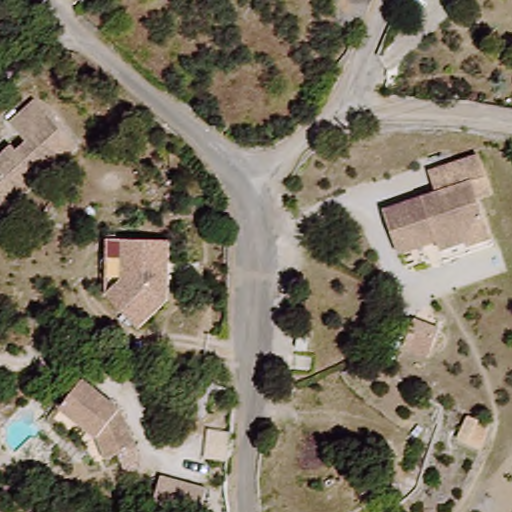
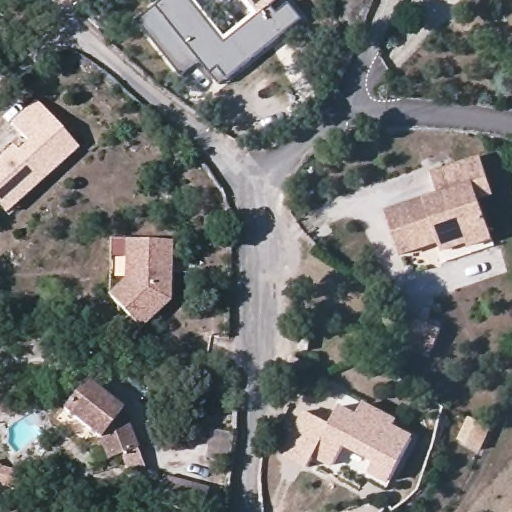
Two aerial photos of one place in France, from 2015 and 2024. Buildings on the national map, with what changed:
new [(214,77),(207,68),(189,83),(141,26),(172,0),(189,0),(194,6),(202,0),(281,0),(271,8),(278,16),(291,5),(304,21),(232,82),(224,88),(214,77)]
unchanged [(0,210),(0,161),(4,157),(11,151),(15,154),(25,146),(7,127),(35,103),(77,149),(18,201),(4,214),(0,210)]
unchanged [(489,186),(475,190),(489,245),(466,251),(463,238),(397,256),(385,212),(439,198),(434,176),(483,163),(489,186)]
unchanged [(177,266),(175,285),(173,307),(142,335),(110,298),(115,244),(131,245),(178,248),(177,266)]
unchanged [(297,272),(291,259),(298,257),(303,270),(297,272)]
unchanged [(439,329),(428,355),(405,346),(416,318),(439,329)]
unchanged [(113,460),(106,439),(68,413),(88,384),(126,411),(132,425),(142,447),(113,460)]
unchanged [(458,429),(468,405),(489,414),(479,437),(458,429)]
new [(310,411),(337,426),(347,409),(366,420),(372,408),(403,426),(400,432),(419,443),(396,485),(376,474),(384,461),(351,442),(334,473),(318,464),(314,470),(286,455),(310,411)]
demolished [(214,497),(167,488),(171,464),(219,473),(214,497)]
new [(205,512),(162,504),(167,480),(215,489),(211,512),(205,512)]

